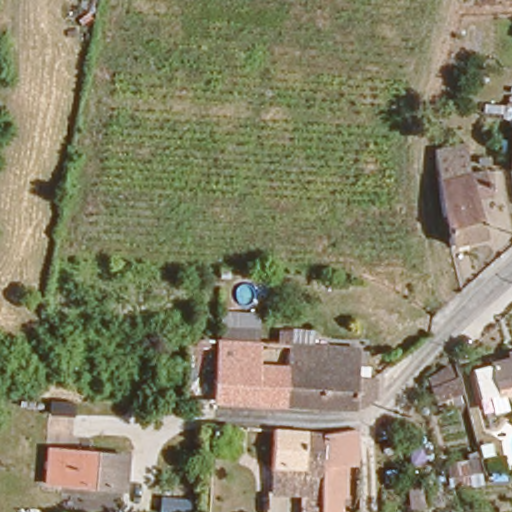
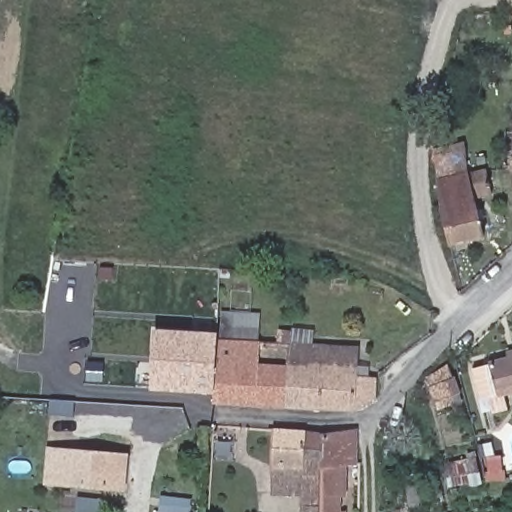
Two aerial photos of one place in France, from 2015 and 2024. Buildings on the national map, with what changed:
unchanged [(471,174),(490,170),(495,195),(476,199),(485,238),(452,244),(440,182),(433,152),(465,145),(471,174)]
unchanged [(219,308),(262,311),(261,341),(217,338),(219,308)]
new [(217,333),(217,338),(214,394),(151,391),(154,329),(217,333)]
unchanged [(375,395),(363,406),(322,404),(305,403),(286,402),(214,398),(217,338),(261,341),(289,342),(358,346),(357,374),(375,375),(375,395)]
unchanged [(484,363),(512,358),(512,389),(490,393),(484,363)]
unchanged [(437,402),(426,376),(450,361),(463,392),(437,402)]
unchanged [(356,426),(357,462),(346,461),(345,490),(340,490),(339,508),(345,508),(345,512),(318,512),(319,492),(320,430),(356,426)]
unchanged [(271,462),(272,427),(320,430),(319,492),(304,492),(274,491),(271,462)]
unchanged [(122,457),(120,489),(43,481),(45,450),(122,457)]
unchanged [(487,488),(474,492),(472,483),(450,486),(446,459),(478,453),(487,488)]

